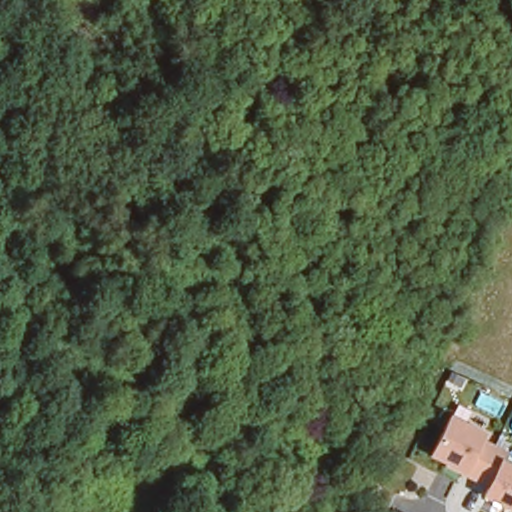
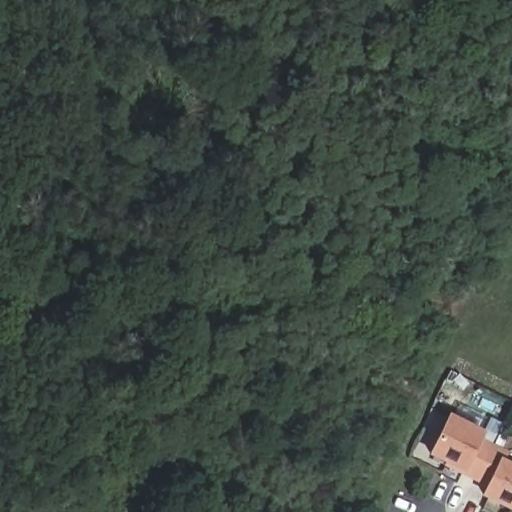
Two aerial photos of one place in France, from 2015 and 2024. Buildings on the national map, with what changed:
unchanged [(481,497),(488,483),(463,472),(427,457),(447,414),(484,430),(480,438),(508,451),(504,461),(512,464),(512,511),(481,497)]

